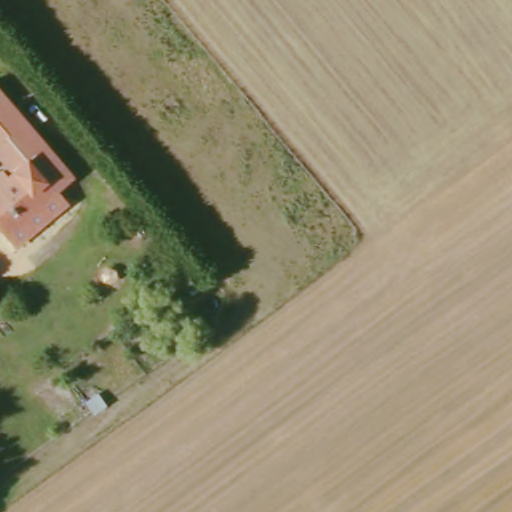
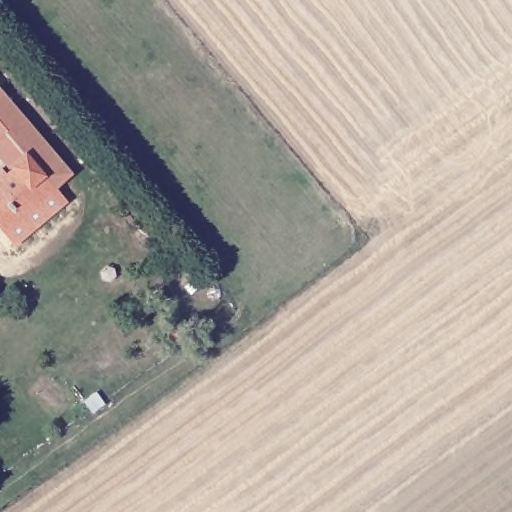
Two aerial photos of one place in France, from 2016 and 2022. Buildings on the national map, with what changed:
unchanged [(10,169),(0,153),(0,86),(80,175),(29,221),(33,231),(18,244),(0,223),(0,176),(10,169)]

